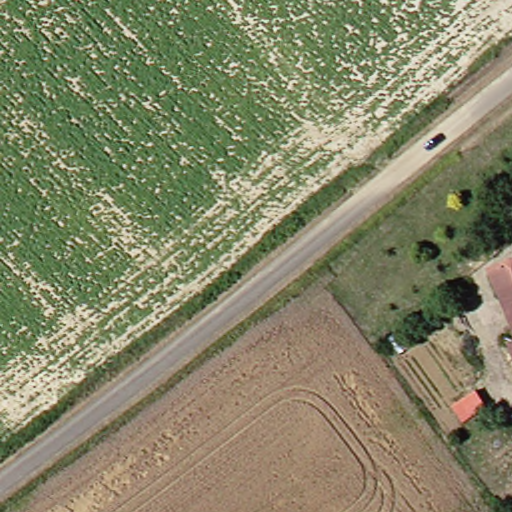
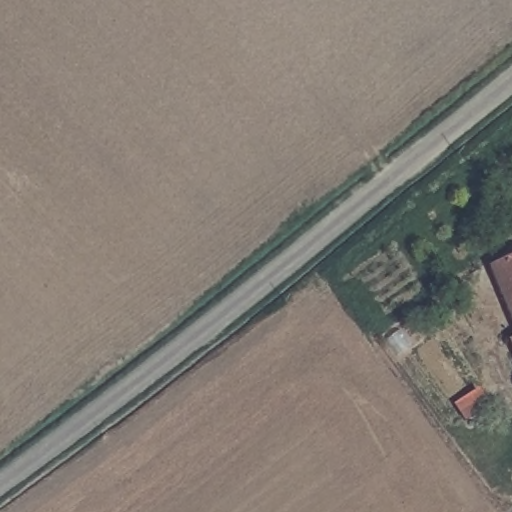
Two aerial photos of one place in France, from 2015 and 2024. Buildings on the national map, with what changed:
unchanged [(500,273),(512,269),(512,308),(500,273)]

